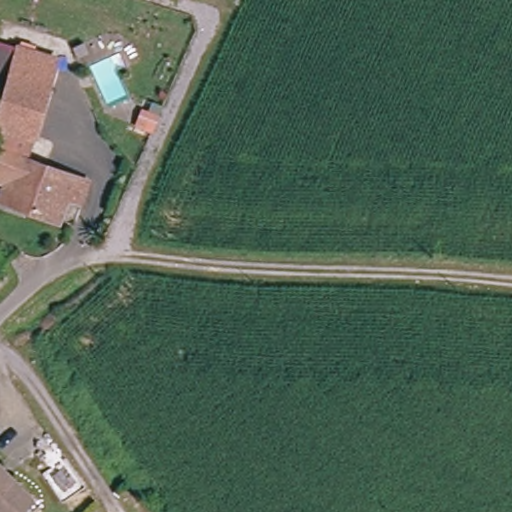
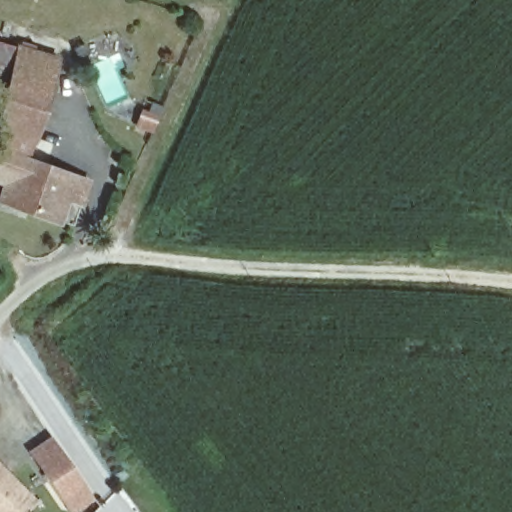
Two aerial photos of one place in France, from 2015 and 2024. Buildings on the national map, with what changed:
unchanged [(7,74),(19,42),(56,59),(46,87),(7,74)]
unchanged [(0,128),(0,92),(7,74),(46,87),(28,138),(0,128)]
unchanged [(20,156),(85,180),(76,204),(61,197),(53,216),(12,201),(10,206),(0,201),(0,190),(4,181),(0,179),(0,143),(21,150),(20,156)]
new [(96,500),(75,512),(69,512),(28,451),(51,435),(96,500)]
unchanged [(0,462),(5,467),(2,471),(8,477),(12,476),(38,501),(26,512),(0,512),(0,462)]

